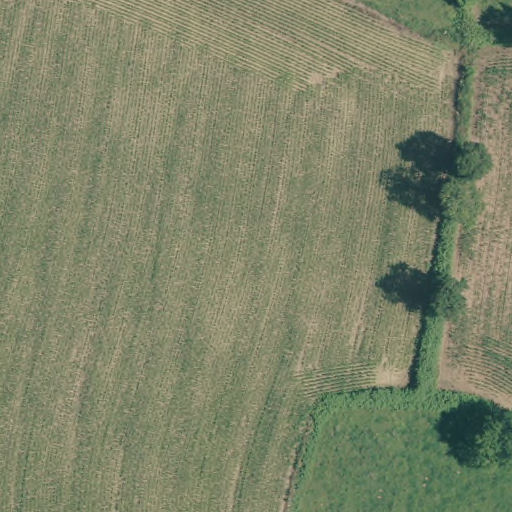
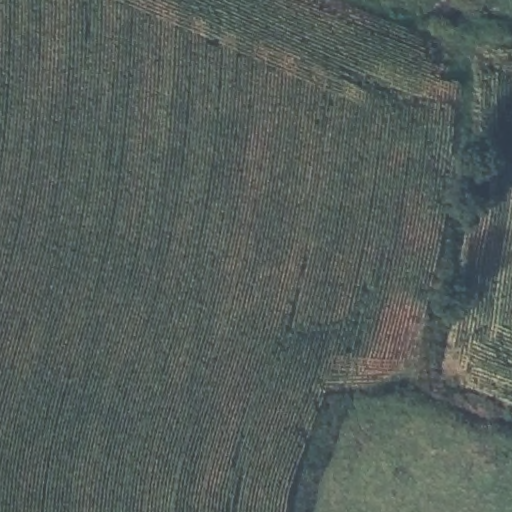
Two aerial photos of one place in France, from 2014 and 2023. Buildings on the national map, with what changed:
[]

